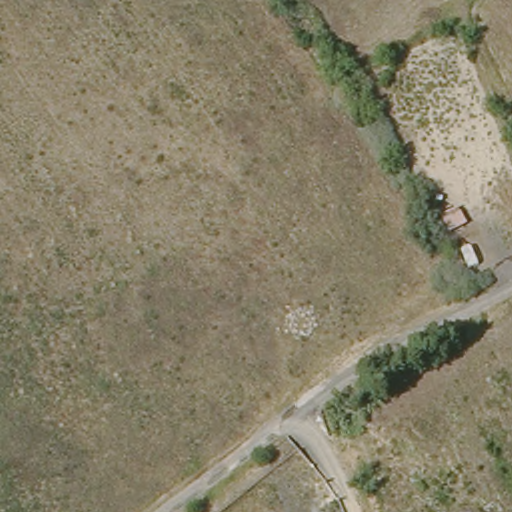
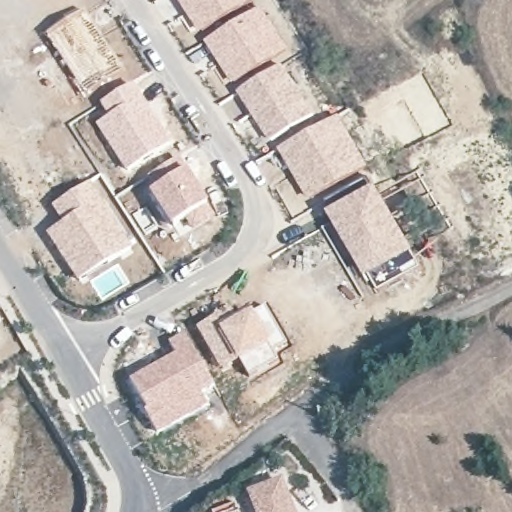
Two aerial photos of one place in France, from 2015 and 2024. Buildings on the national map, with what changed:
new [(201,34),(179,0),(255,0),(256,1),(201,34)]
new [(261,6),(288,50),(261,69),(233,85),(205,41),(261,6)]
new [(126,74),(87,100),(47,38),(85,12),(126,74)]
new [(281,63),(314,114),(269,141),(237,91),(281,63)]
new [(107,116),(98,103),(132,83),(171,142),(124,172),(94,126),(107,116)]
new [(339,115),(368,167),(361,172),(363,175),(352,180),(306,203),(292,175),(278,149),(339,115)]
new [(186,170),(208,205),(173,228),(148,193),(186,170)]
new [(60,223),(51,206),(93,182),(131,246),(76,282),(45,233),(60,223)]
new [(331,209),(366,190),(376,185),(414,251),(368,278),(328,211),(331,209)]
unchanged [(449,206),(461,229),(469,222),(484,255),(468,265),(439,209),(449,206)]
new [(231,307),(236,318),(253,312),(271,344),(238,362),(220,372),(196,329),(231,307)]
new [(271,344),(254,313),(264,307),(286,345),(273,353),(278,361),(249,377),(240,361),(271,344)]
new [(173,354),(166,341),(183,332),(215,386),(203,394),(209,403),(157,434),(129,380),(173,354)]
unchanged [(251,494),(283,482),(293,512),(257,512),(251,494)]

